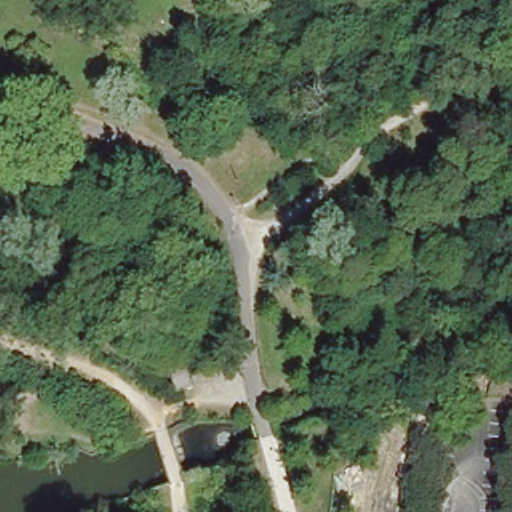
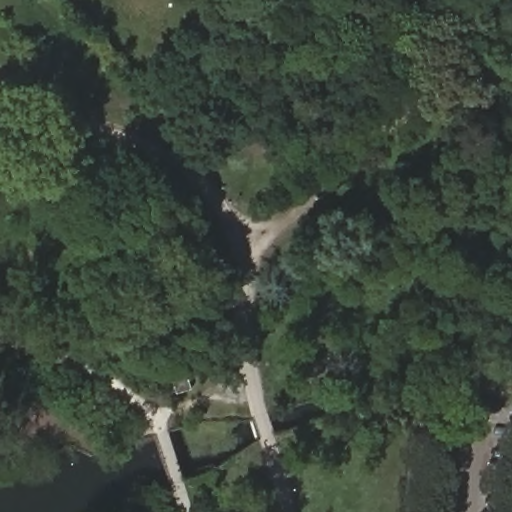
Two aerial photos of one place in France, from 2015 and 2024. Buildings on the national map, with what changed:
unchanged [(203,400),(188,407),(179,390),(194,382),(203,400)]

